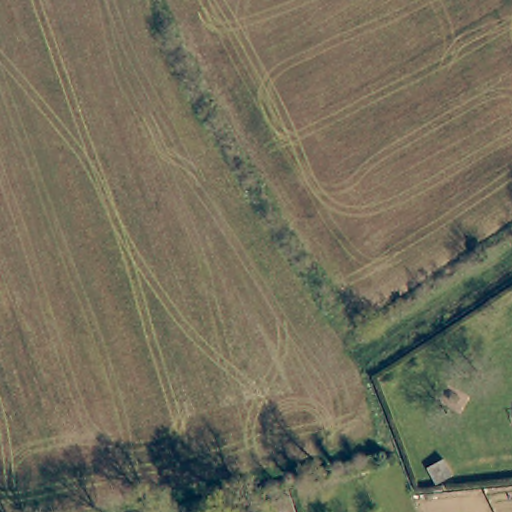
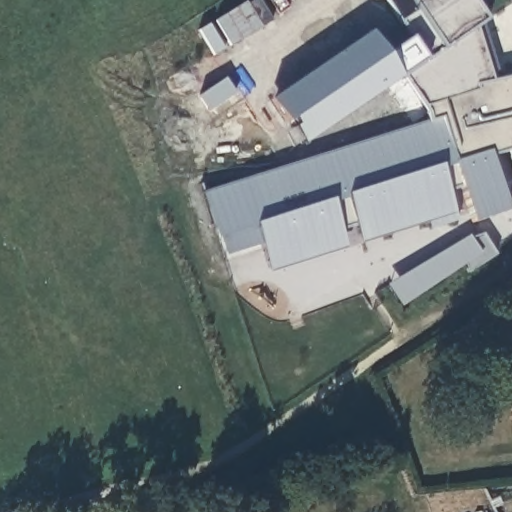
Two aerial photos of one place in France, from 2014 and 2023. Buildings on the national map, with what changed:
new [(491,155),(510,213),(473,224),(461,190),(450,192),(459,221),(432,229),(430,222),(358,242),(354,227),(342,230),(347,249),(268,272),(260,246),(224,257),(203,190),(430,120),(426,105),(402,75),(425,59),(386,0),(473,0),(485,20),(498,77),(512,74),(512,157),(509,149),(491,155)]
new [(470,272),(466,263),(400,306),(387,286),(468,236),(485,231),(497,254),(470,272)]

